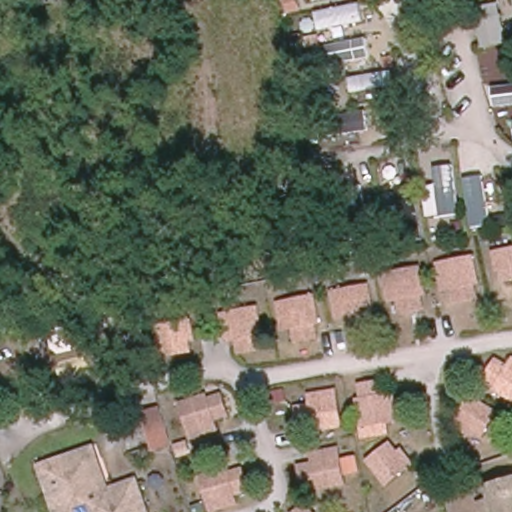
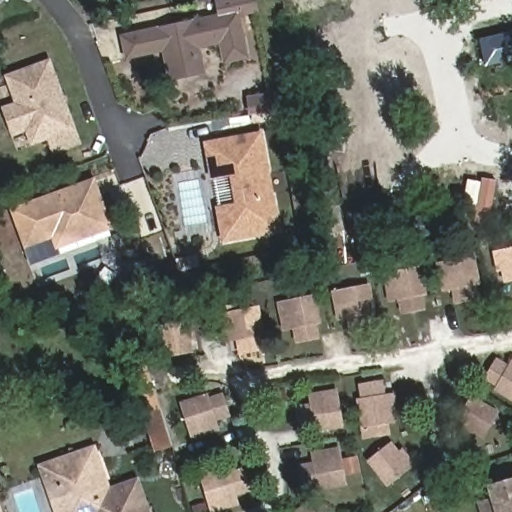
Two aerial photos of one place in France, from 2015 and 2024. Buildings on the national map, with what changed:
demolished [(493,0),(512,0),(512,6),(495,7),(493,0)]
new [(170,81),(163,52),(126,60),(121,36),(240,10),(250,58),(223,63),(220,45),(201,49),(207,74),(170,81)]
new [(512,31),(512,61),(486,67),(479,39),(512,31)]
new [(5,75),(51,58),(78,129),(83,144),(54,154),(49,141),(31,147),(25,132),(11,137),(1,108),(16,102),(5,75)]
unchanged [(341,66),(370,60),(380,58),(384,81),(374,83),(345,88),(341,66)]
unchanged [(336,115),(364,110),(374,108),(378,129),(369,131),(340,137),(336,115)]
new [(204,142),(262,131),(281,233),(222,243),(216,207),(237,203),(232,177),(211,181),(204,142)]
unchanged [(445,212),(441,170),(455,169),(460,210),(445,212)]
new [(25,251),(10,208),(96,178),(114,230),(56,249),(54,240),(25,251)]
unchanged [(486,193),(494,192),(495,205),(508,201),(509,224),(476,228),(468,179),(484,178),(486,193)]
unchanged [(506,283),(504,275),(497,275),(492,252),(512,249),(512,282),(506,283)]
unchanged [(483,285),(480,286),(482,300),(454,304),(451,293),(442,294),(436,262),(477,254),(483,285)]
unchanged [(432,297),(423,300),(427,311),(403,316),(400,304),(391,306),(384,275),(426,265),(432,297)]
unchanged [(382,327),(353,333),(349,321),(338,324),(331,292),(372,284),(382,327)]
unchanged [(324,326),(319,328),(321,336),(301,340),(296,329),(282,332),(274,302),(317,294),(324,326)]
unchanged [(267,335),(263,336),(265,350),(240,353),(239,347),(226,349),(220,314),(261,304),(267,335)]
unchanged [(200,350),(167,358),(161,330),(193,320),(200,350)]
demolished [(50,372),(45,340),(78,335),(81,367),(50,372)]
unchanged [(497,359),(505,365),(512,356),(512,400),(482,383),(497,359)]
unchanged [(358,385),(384,380),(389,394),(396,393),(399,423),(364,429),(358,385)]
unchanged [(299,436),(291,400),(336,388),(346,426),(299,436)]
unchanged [(223,391),(231,416),(217,419),(220,431),(194,437),(181,401),(223,391)]
unchanged [(474,397),(501,413),(486,439),(459,419),(474,397)]
unchanged [(157,451),(143,412),(161,407),(172,445),(157,451)]
unchanged [(398,448),(402,446),(417,465),(390,487),(367,462),(392,441),(398,448)]
unchanged [(139,476),(152,512),(53,512),(38,469),(99,445),(111,486),(139,476)]
unchanged [(299,465),(313,462),(311,452),(340,447),(348,483),(304,491),(299,465)]
unchanged [(253,491),(239,496),(242,504),(213,512),(211,512),(202,478),(243,466),(253,491)]
unchanged [(478,512),(477,506),(495,501),(490,488),(512,481),(512,512),(478,512)]
new [(4,512),(0,512),(0,501),(1,504),(4,512)]
unchanged [(315,512),(298,512),(308,503),(315,512)]

